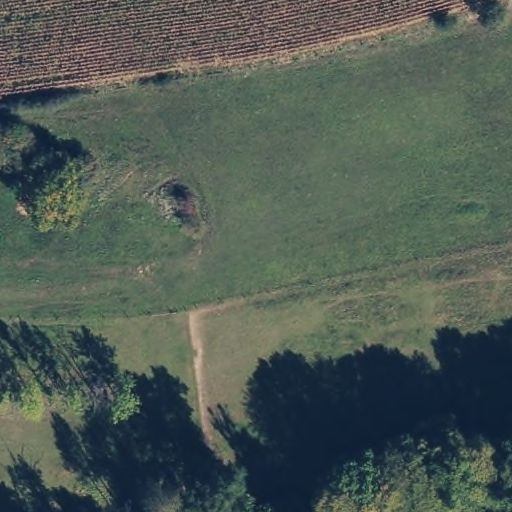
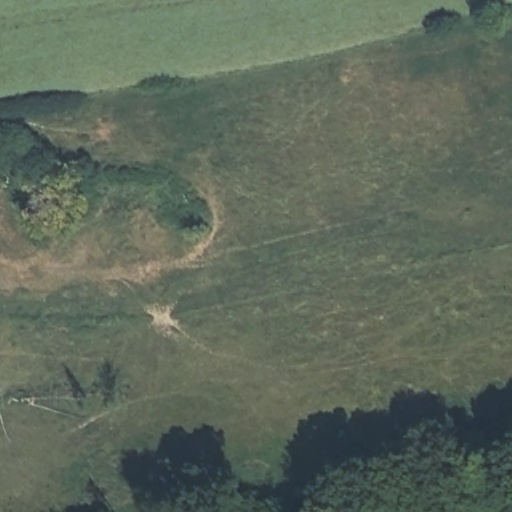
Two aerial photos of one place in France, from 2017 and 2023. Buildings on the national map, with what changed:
[]

